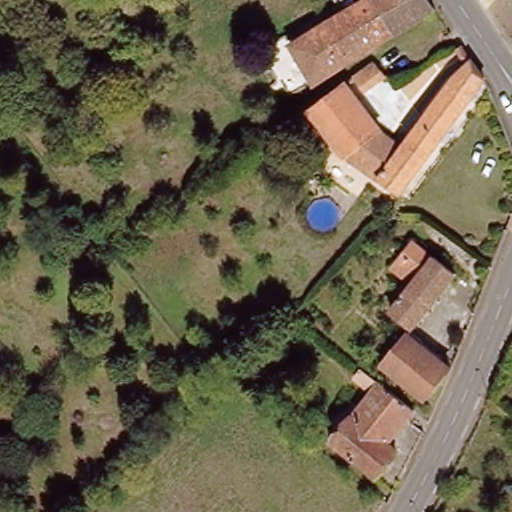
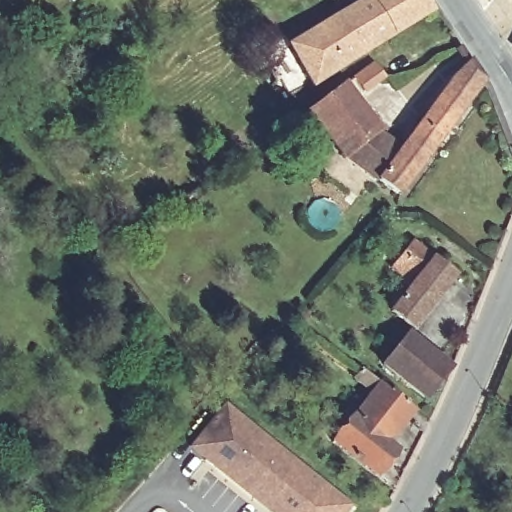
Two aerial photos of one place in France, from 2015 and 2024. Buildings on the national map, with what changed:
unchanged [(314,85),(290,48),(370,0),(434,0),(438,7),(314,85)]
unchanged [(377,67),(387,80),(365,94),(357,81),(377,67)]
unchanged [(455,86),(473,68),(485,86),(397,200),(379,187),(396,165),(405,153),(455,86)]
unchanged [(380,137),(376,140),(344,163),(311,114),(347,88),(380,137)]
unchanged [(379,187),(373,182),(344,163),(376,140),(380,137),(405,153),(396,165),(379,187)]
unchanged [(416,332),(393,314),(415,288),(396,272),(417,245),(458,281),(416,332)]
unchanged [(450,372),(426,405),(385,370),(409,340),(450,372)]
unchanged [(329,447),(378,386),(411,412),(386,445),(407,461),(389,492),(329,447)]
new [(224,401),(270,435),(354,503),(348,512),(267,512),(217,472),(186,447),(224,401)]

